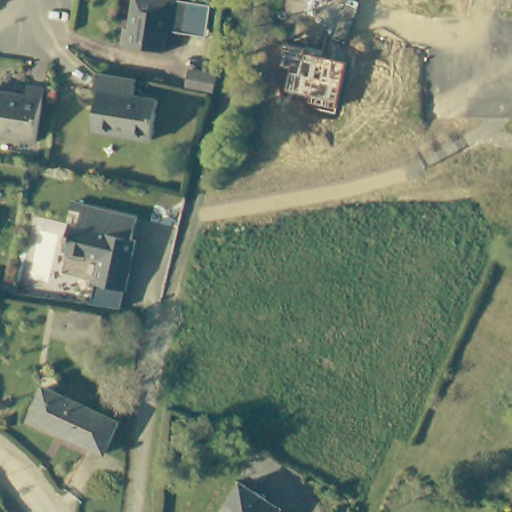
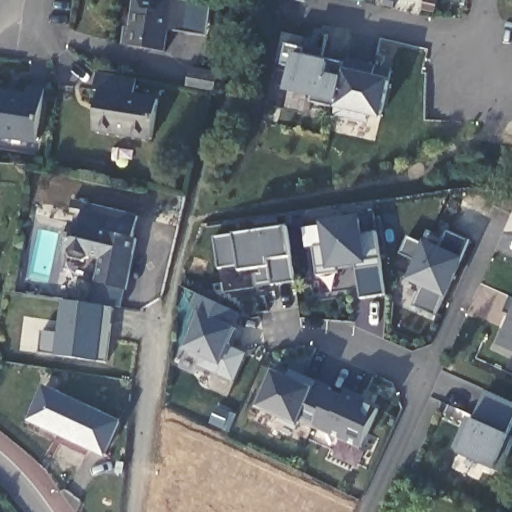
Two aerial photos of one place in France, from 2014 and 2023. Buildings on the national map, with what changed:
unchanged [(207,37),(182,35),(169,33),(165,53),(120,45),(123,27),(128,28),(133,0),(179,0),(188,1),(212,6),(207,37)]
new [(330,62),(347,63),(349,60),(377,66),(391,70),(390,80),(382,119),(369,116),(366,123),(334,116),(337,110),(310,103),(316,96),(286,90),(291,66),(282,64),(288,45),(324,53),(325,61),(330,62)]
unchanged [(135,99),(158,103),(150,143),(94,133),(100,93),(94,91),(97,74),(137,81),(135,99)]
unchanged [(213,81),(212,83),(209,98),(197,96),(181,94),(185,76),(213,81)]
unchanged [(28,94),(45,96),(36,150),(0,143),(0,99),(26,104),(28,94)]
unchanged [(131,258),(126,257),(123,273),(128,274),(124,295),(94,289),(100,264),(87,261),(87,264),(81,268),(68,265),(64,259),(65,257),(62,256),(67,226),(76,228),(81,206),(135,218),(131,240),(135,240),(131,258)]
new [(361,298),(357,271),(319,276),(315,249),(329,248),(325,223),(363,218),(366,235),(380,232),(387,293),(361,298)]
new [(238,236),(287,228),(292,258),(295,283),(256,288),(255,276),(263,275),(265,268),(241,271),(240,266),(218,268),(214,239),(238,236)]
new [(468,241),(462,261),(444,299),(436,317),(414,306),(423,288),(406,280),(416,260),(400,254),(409,239),(424,245),(425,242),(430,231),(445,238),(447,233),(468,241)]
new [(122,310),(113,309),(105,363),(39,353),(41,333),(56,335),(61,302),(94,306),(94,289),(124,295),(122,310)]
new [(239,315),(234,329),(238,330),(230,347),(247,355),(235,383),(198,366),(204,359),(184,350),(194,330),(188,327),(196,311),(192,309),(198,296),(239,315)]
demolished [(102,319),(99,333),(71,328),(73,314),(102,319)]
new [(498,344),(512,315),(512,350),(498,344)]
new [(315,389),(316,383),(332,389),(331,391),(344,397),(347,390),(368,400),(366,406),(380,412),(361,449),(300,422),(299,426),(258,409),(275,372),(315,389)]
unchanged [(119,427),(104,457),(55,435),(53,440),(22,425),(31,403),(37,406),(44,391),(119,427)]
new [(510,437),(495,470),(458,454),(460,451),(454,449),(467,419),(475,422),(489,393),(512,403),(512,433),(510,437)]
unchanged [(281,510),(279,512),(223,512),(241,484),(281,510)]

